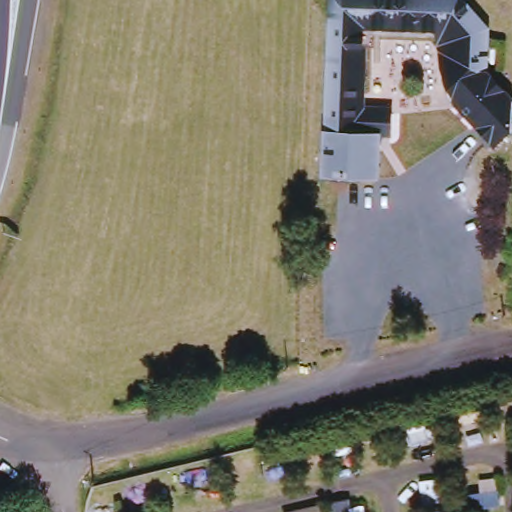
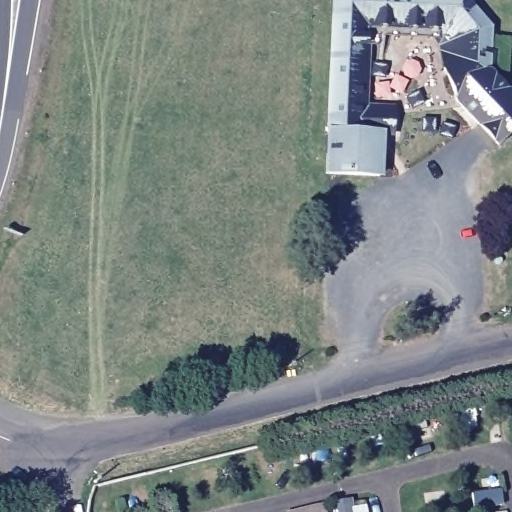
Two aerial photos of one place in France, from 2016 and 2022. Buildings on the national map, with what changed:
unchanged [(487,68),(455,100),(440,68),(442,66),(437,28),(430,28),(429,33),(415,33),(415,29),(405,29),(405,33),(395,32),(395,28),(387,27),(387,31),(375,31),(375,26),(365,26),(364,47),(370,47),(369,59),(365,58),(364,68),(369,69),(369,79),(365,79),(364,88),(369,88),(368,96),(363,96),(363,108),(368,108),(368,110),(390,111),(390,137),(380,136),(378,179),(322,177),(327,0),(459,0),(481,25),(487,68)]
unchanged [(487,68),(512,96),(512,128),(497,143),(455,100),(487,68)]
unchanged [(320,506),(322,512),(291,512),(320,506)]

